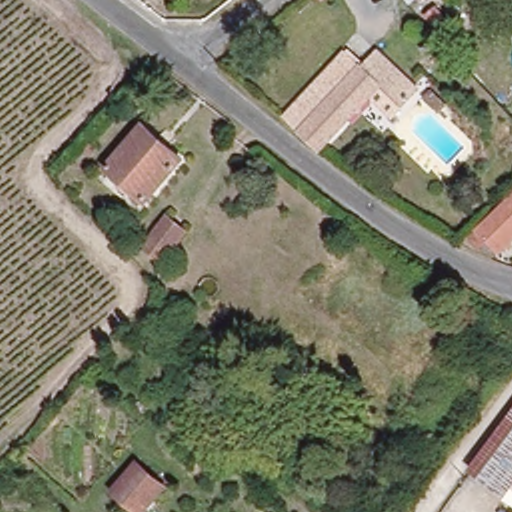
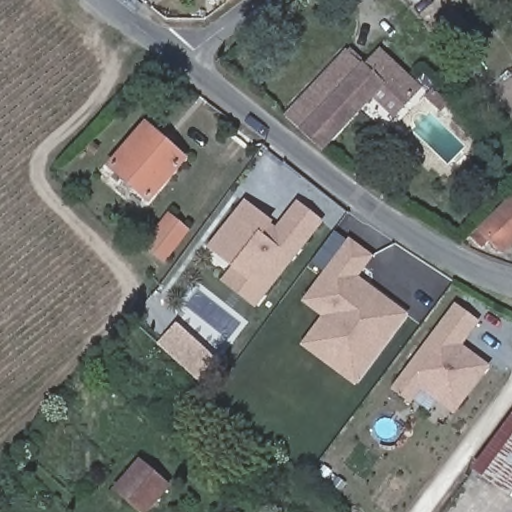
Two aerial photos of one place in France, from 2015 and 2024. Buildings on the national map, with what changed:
unchanged [(308,131),(285,114),(354,43),(369,59),(383,43),(402,61),(424,82),(409,98),(387,77),(324,141),(308,131)]
unchanged [(189,155),(153,197),(112,162),(149,120),(189,155)]
unchanged [(101,144),(97,150),(91,145),(95,139),(101,144)]
unchanged [(493,234),(483,243),(474,233),(512,196),(512,241),(504,248),(493,234)]
new [(265,291),(209,245),(245,202),(269,222),(276,228),(298,203),(321,222),(265,291)]
unchanged [(192,231),(167,259),(148,241),(173,212),(192,231)]
new [(356,275),(407,312),(355,383),(303,345),(324,316),(305,301),(349,241),(371,256),(356,275)]
new [(421,390),(411,402),(392,387),(455,302),(481,321),(463,345),(491,366),(454,415),(421,390)]
new [(198,380),(157,343),(177,322),(217,359),(198,380)]
unchanged [(512,410),(512,490),(474,461),(512,410)]
unchanged [(168,487),(147,512),(146,512),(117,488),(140,462),(168,487)]

